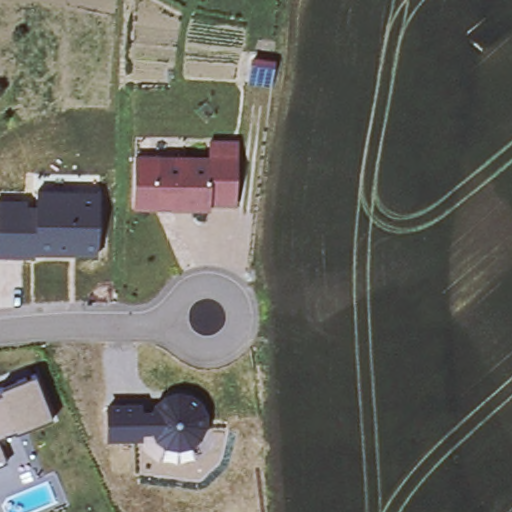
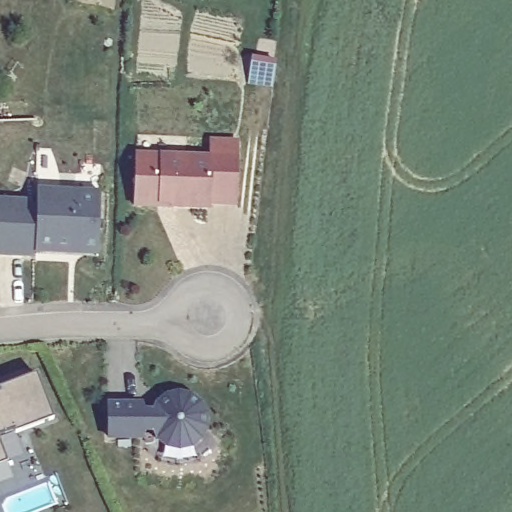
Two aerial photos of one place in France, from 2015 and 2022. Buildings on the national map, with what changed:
unchanged [(210,207),(210,212),(132,208),(135,157),(209,157),(210,141),(240,141),(237,207),(210,207)]
unchanged [(37,199),(37,190),(100,190),(98,256),(34,255),(34,258),(0,256),(0,199),(37,199)]
unchanged [(16,436),(14,431),(0,437),(0,396),(2,395),(0,390),(35,377),(51,420),(16,436)]
unchanged [(207,433),(202,441),(195,447),(185,452),(177,453),(167,451),(160,447),(155,443),(154,436),(143,436),(142,443),(106,441),(105,405),(140,405),(140,413),(155,412),(158,403),(160,400),(167,396),(176,395),(185,396),(193,399),(200,404),(206,411),(208,419),(207,433)]
unchanged [(5,463),(0,465),(0,447),(5,463)]

